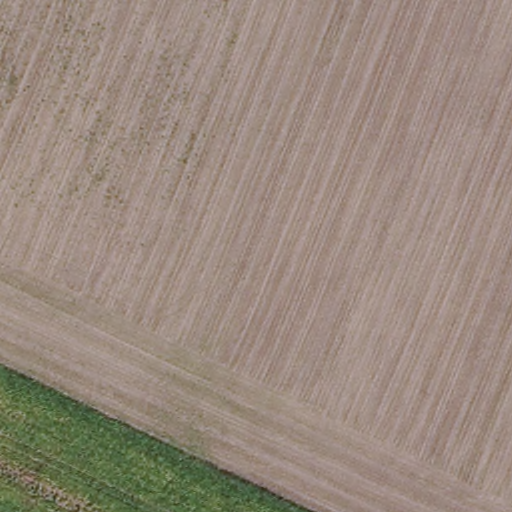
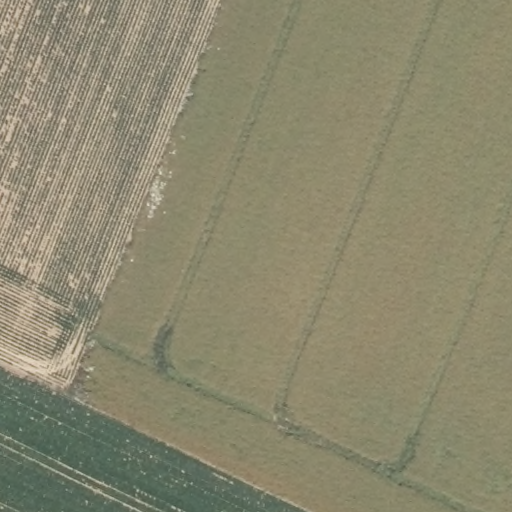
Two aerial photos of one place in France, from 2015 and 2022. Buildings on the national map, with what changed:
[]

